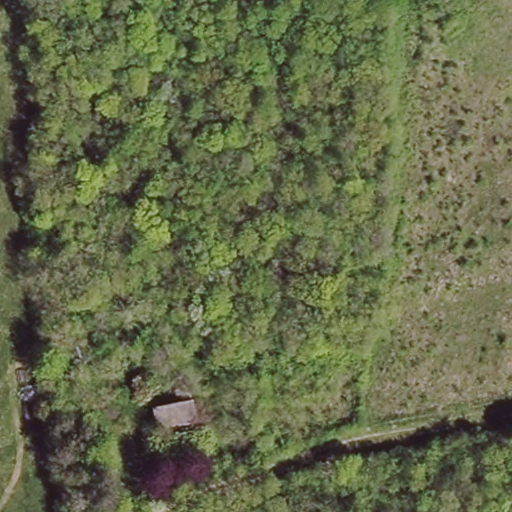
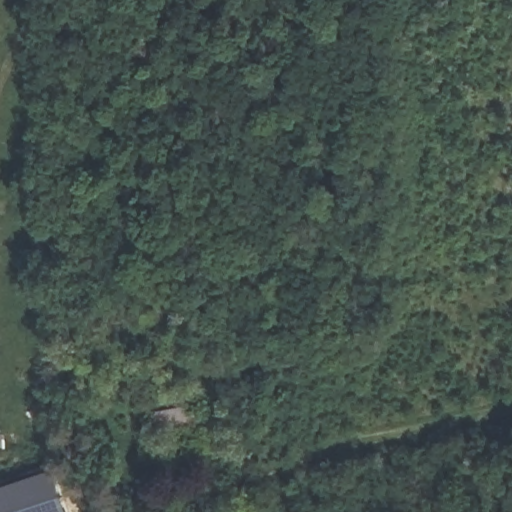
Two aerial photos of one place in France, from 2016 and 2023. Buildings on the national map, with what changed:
unchanged [(155,405),(193,401),(195,423),(157,427),(155,405)]
new [(0,481),(51,466),(65,512),(0,512),(0,481)]

